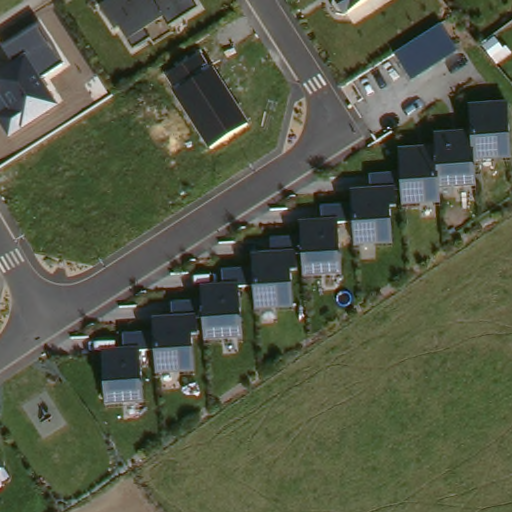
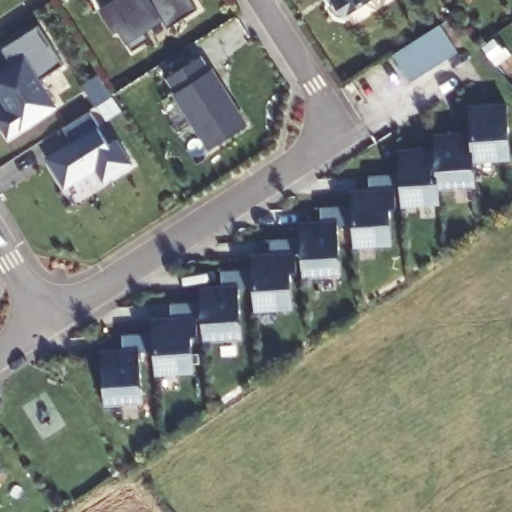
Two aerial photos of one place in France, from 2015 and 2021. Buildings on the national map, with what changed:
unchanged [(195,0),(199,7),(172,24),(165,18),(147,29),(151,36),(133,48),(127,39),(102,6),(112,0),(195,0)]
unchanged [(370,0),(346,15),(335,0),(370,0)]
unchanged [(442,22),(461,50),(412,80),(394,53),(442,22)]
unchanged [(0,124),(0,114),(8,109),(0,97),(0,71),(12,62),(3,48),(38,25),(63,64),(40,79),(57,107),(22,130),(8,138),(0,124)]
unchanged [(174,93),(176,91),(165,77),(200,54),(210,70),(212,69),(248,123),(208,149),(174,93)]
unchanged [(125,332),(153,330),(154,315),(171,313),(171,301),(204,298),(202,284),(221,282),(221,268),(254,266),(253,251),(272,250),(273,235),(302,234),(301,218),(322,218),(321,205),(352,203),(351,187),(371,186),(370,170),(400,170),(399,147),(434,145),(434,130),(471,128),(470,101),(510,99),(512,136),(512,160),(479,161),(478,187),(442,189),(443,201),(398,204),(396,243),(356,244),(355,227),(341,227),(341,274),(296,276),(296,306),(246,308),(245,338),(197,340),(197,370),(158,372),(157,358),(143,358),(144,402),(107,403),(104,348),(125,347),(125,332)]
new [(50,159),(71,145),(62,132),(90,114),(99,129),(97,130),(109,148),(117,143),(132,167),(104,185),(95,172),(65,191),(48,166),(50,159)]
unchanged [(4,466),(0,469),(0,460),(4,466)]

